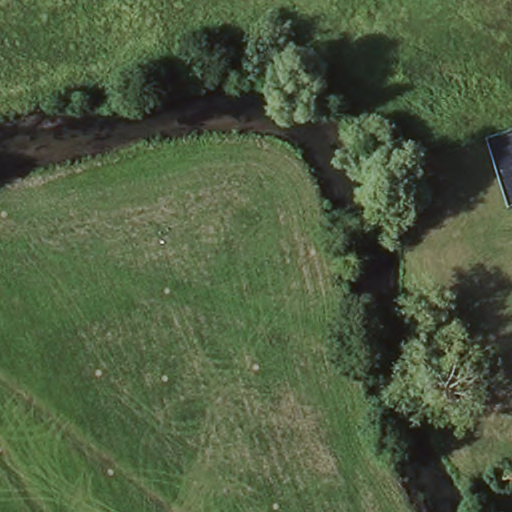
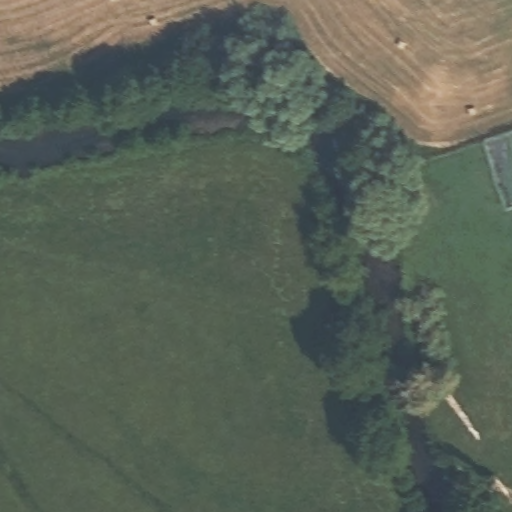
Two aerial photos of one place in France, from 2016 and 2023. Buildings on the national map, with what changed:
unchanged [(439,175),(422,179),(416,158),(432,154),(439,175)]

